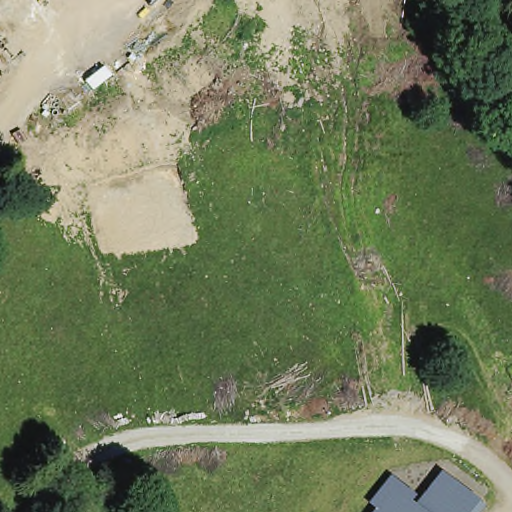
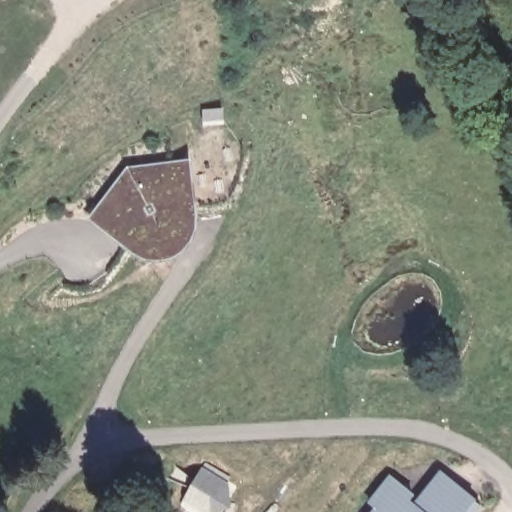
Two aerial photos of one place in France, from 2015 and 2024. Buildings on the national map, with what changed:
new [(193,246),(187,252),(177,260),(165,263),(153,264),(141,261),(86,220),(128,167),(193,159),(200,212),(200,224),(198,235),(193,246)]
new [(226,482),(228,510),(222,512),(187,512),(179,507),(201,468),(226,482)]
unchanged [(444,477),(480,506),(475,512),(416,512),(444,477)]
unchanged [(369,507),(389,483),(413,502),(408,507),(415,512),(375,512),(369,507)]

